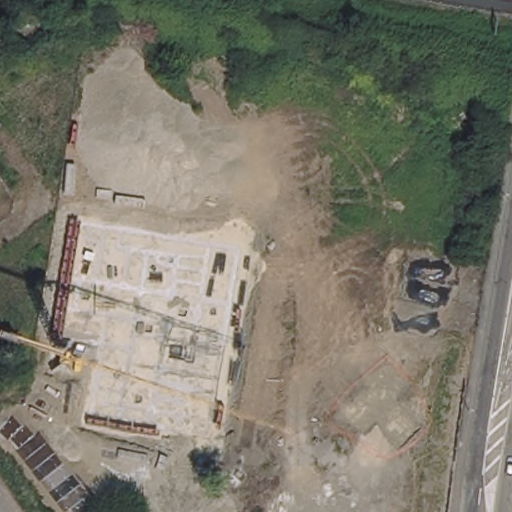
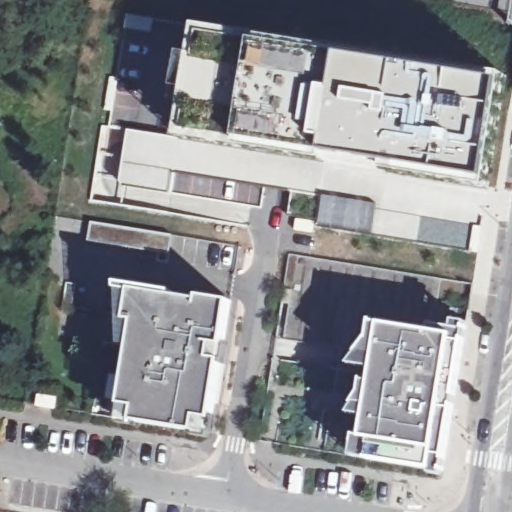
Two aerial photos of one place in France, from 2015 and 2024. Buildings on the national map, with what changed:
new [(182,80),(180,66),(185,67),(187,54),(192,55),(197,25),(238,32),(237,42),(227,41),(225,46),(223,53),(207,52),(205,60),(222,63),(217,109),(197,108),(192,130),(241,139),(255,39),(344,54),(338,89),(313,89),(306,88),(305,96),(303,96),(302,105),(282,104),(282,132),(272,131),(272,138),(299,145),(299,149),(270,147),(269,151),(292,156),(289,172),(285,172),(282,188),(224,182),(176,171),(172,195),(169,211),(115,199),(125,128),(179,135),(184,105),(182,80)]
new [(329,144),(338,89),(344,54),(505,81),(489,184),(436,175),(369,159),(327,153),(329,144)]
new [(313,89),(338,89),(329,144),(317,142),(319,130),(309,129),(313,89)]
new [(102,125),(125,128),(115,199),(90,195),(102,125)]
new [(176,171),(224,182),(221,201),(172,195),(176,171)]
new [(323,194),(377,203),(372,234),(318,224),(323,194)]
new [(420,215),(482,225),(475,248),(471,248),(471,250),(415,241),(420,215)]
new [(173,236),(170,254),(88,242),(91,222),(173,236)]
new [(131,345),(122,344),(119,284),(232,301),(212,434),(120,418),(131,345)]
new [(362,417),(346,414),(357,400),(360,382),(368,383),(370,370),(355,367),(357,353),(367,342),(370,325),(375,326),(427,334),(429,327),(467,334),(445,473),(364,459),(347,456),(350,437),(359,438),(362,417)]

